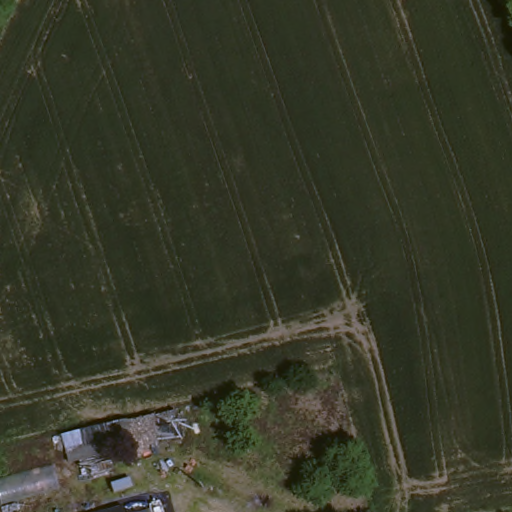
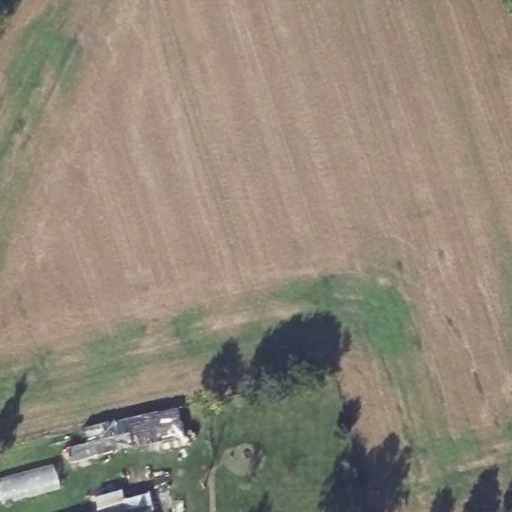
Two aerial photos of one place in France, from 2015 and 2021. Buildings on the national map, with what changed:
unchanged [(146,509),(147,512),(135,512),(146,509)]

